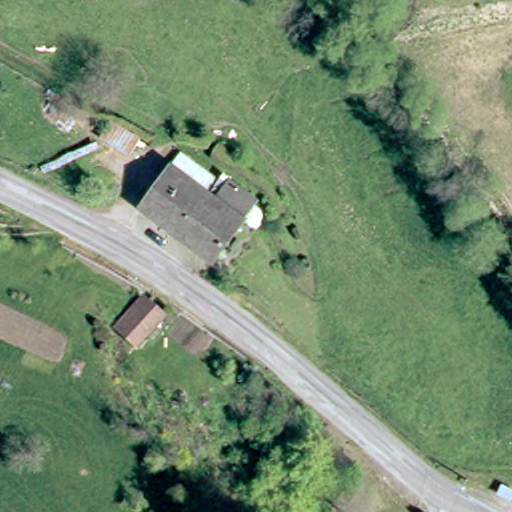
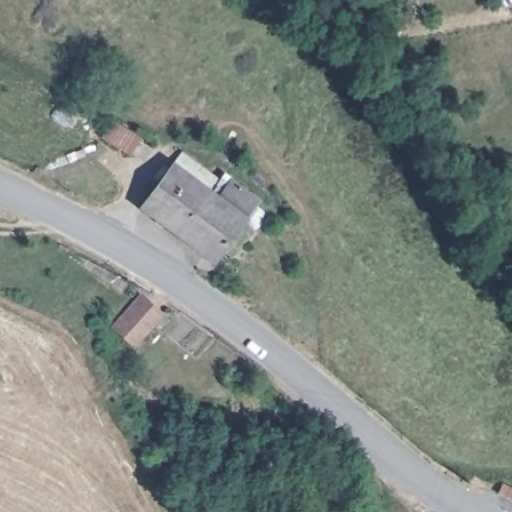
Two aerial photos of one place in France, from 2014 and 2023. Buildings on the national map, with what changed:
unchanged [(135,138),(127,151),(101,137),(108,125),(108,124),(135,138)]
unchanged [(221,266),(150,212),(181,170),(219,197),(226,189),(232,181),(235,183),(266,207),(221,266)]
unchanged [(117,327),(145,297),(165,315),(138,346),(117,327)]
unchanged [(502,477),(512,481),(509,488),(499,483),(502,477)]

